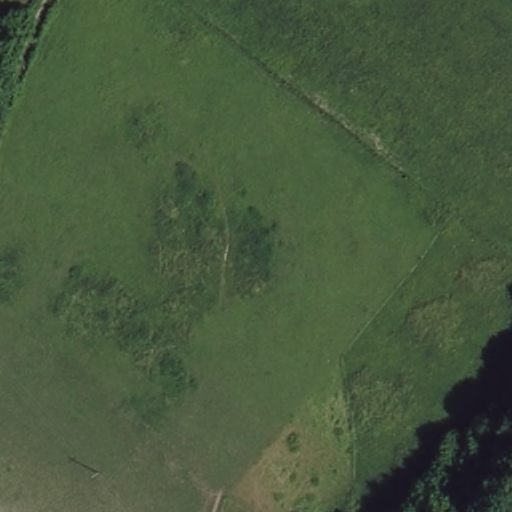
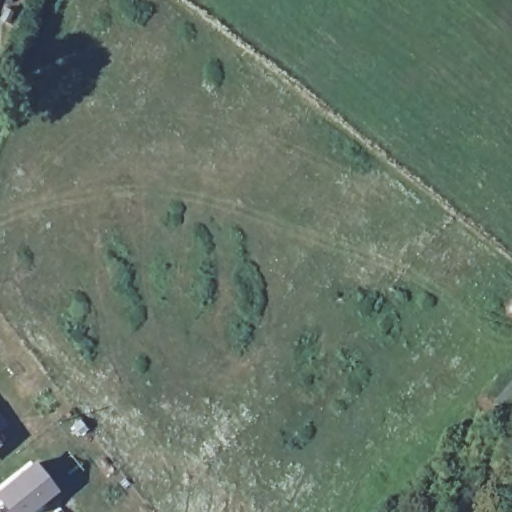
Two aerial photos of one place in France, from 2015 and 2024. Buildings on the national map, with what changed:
new [(6,426),(0,430),(0,418),(6,426)]
new [(7,512),(0,503),(0,487),(35,460),(57,491),(29,512),(7,512)]

